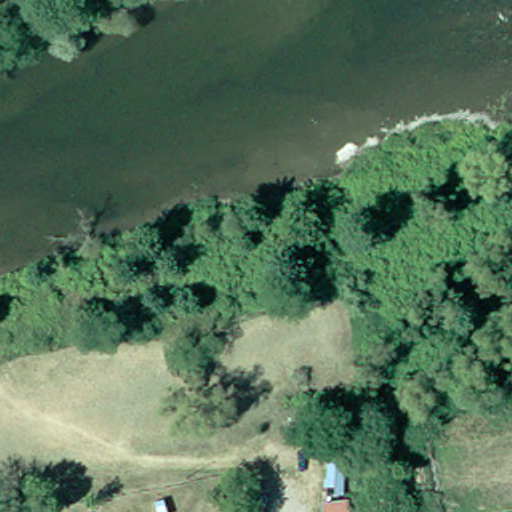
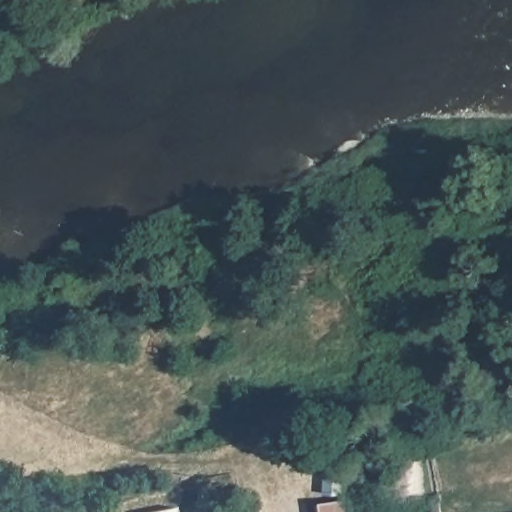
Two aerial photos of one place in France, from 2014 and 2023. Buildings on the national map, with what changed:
unchanged [(340,452),(337,494),(320,492),(322,451),(340,452)]
unchanged [(315,512),(314,499),(337,497),(339,512),(315,512)]

